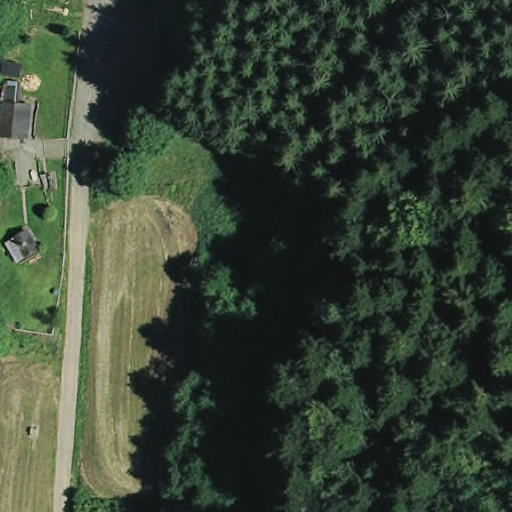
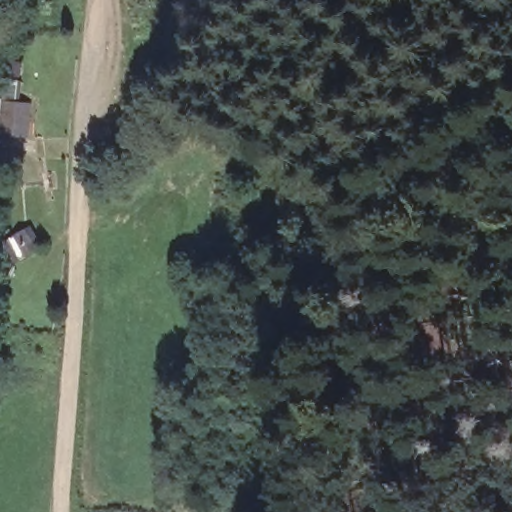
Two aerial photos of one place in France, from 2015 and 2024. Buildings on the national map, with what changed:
unchanged [(7,115),(9,107),(34,109),(32,129),(32,139),(7,138),(7,127),(7,115)]
unchanged [(23,260),(17,240),(28,231),(37,251),(23,260)]

